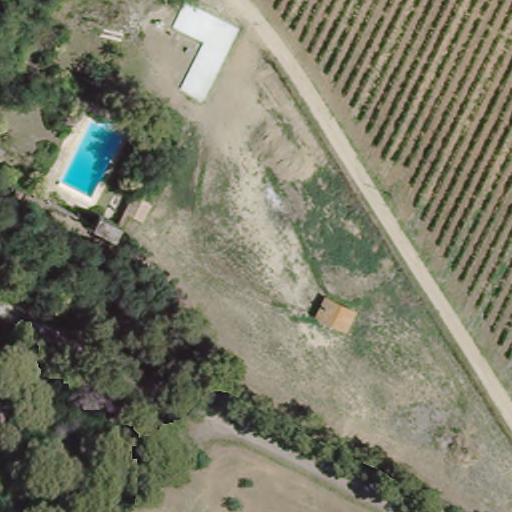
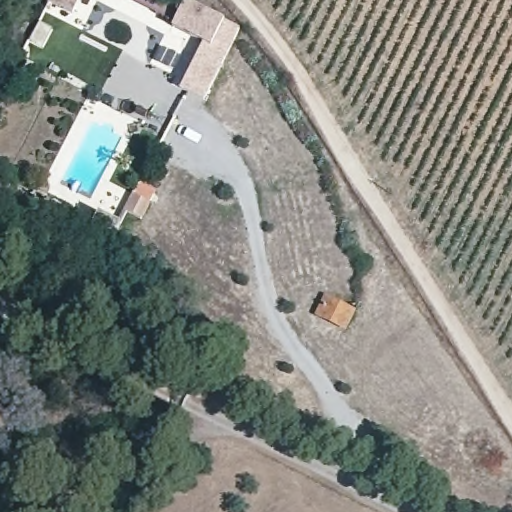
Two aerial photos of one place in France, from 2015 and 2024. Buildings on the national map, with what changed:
new [(48,0),(79,0),(73,12),(48,0)]
new [(204,101),(181,89),(204,42),(173,26),(176,20),(133,0),(187,0),(240,27),(204,101)]
demolished [(192,0),(197,0),(228,25),(213,50),(191,37),(196,26),(183,17),(192,0)]
demolished [(186,100),(213,50),(229,58),(203,107),(186,100)]
demolished [(0,177),(0,155),(28,170),(18,187),(0,177)]
unchanged [(131,206),(144,181),(164,192),(150,217),(131,206)]
unchanged [(110,204),(128,213),(118,230),(101,220),(110,204)]
unchanged [(351,305),(339,325),(319,312),(331,293),(351,305)]

